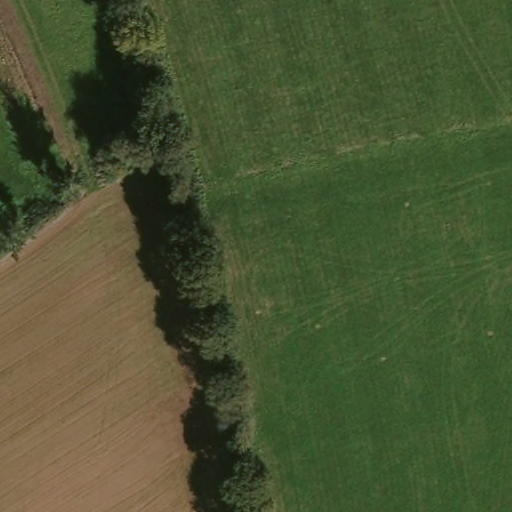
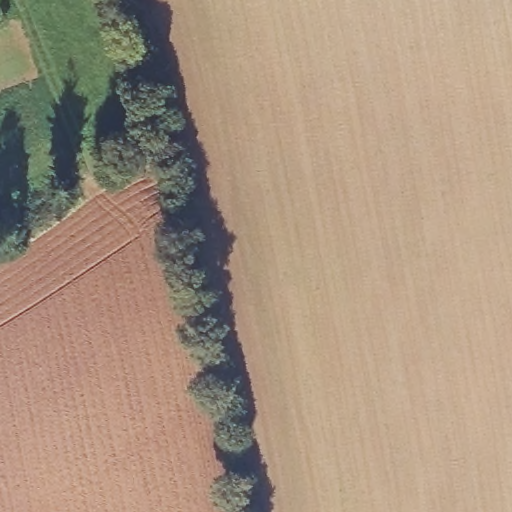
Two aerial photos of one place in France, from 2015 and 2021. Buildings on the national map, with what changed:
[]

